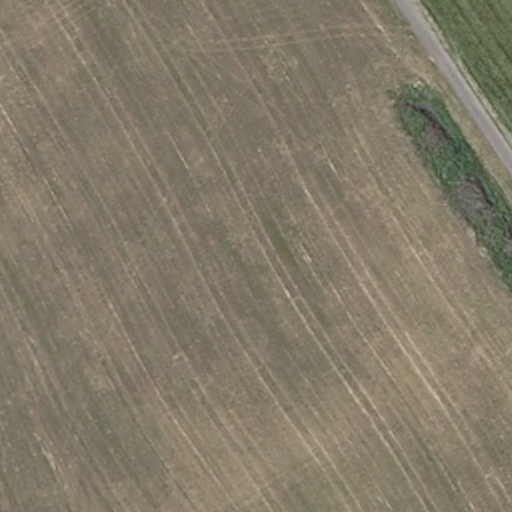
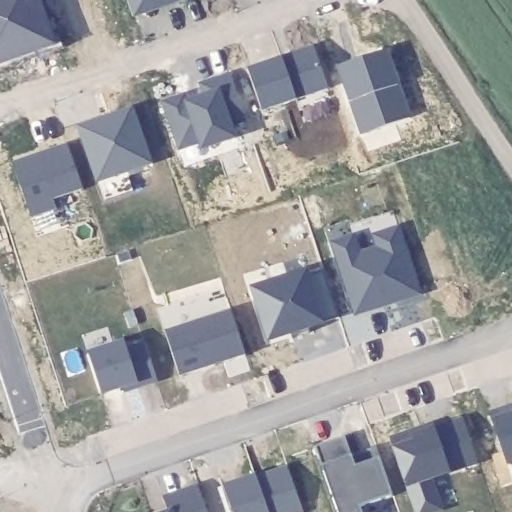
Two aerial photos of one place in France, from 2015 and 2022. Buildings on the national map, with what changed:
new [(0,64),(0,0),(41,0),(55,46),(0,64)]
new [(127,0),(182,0),(132,18),(127,0)]
new [(313,44),(327,88),(261,110),(248,69),(313,44)]
new [(388,48),(411,117),(360,134),(337,66),(388,48)]
new [(187,93),(187,98),(202,94),(198,83),(230,72),(246,121),(233,125),(238,136),(201,150),(199,143),(178,151),(162,101),(187,93)]
new [(132,106),(153,165),(96,183),(77,126),(132,106)]
new [(68,143),(83,189),(52,198),(55,209),(31,218),(12,161),(68,143)]
new [(355,235),(360,250),(373,246),(372,234),(401,225),(422,293),(354,317),(330,243),(355,235)]
new [(307,267),(309,276),(323,272),(337,318),(267,342),(249,287),(307,267)]
new [(230,309),(246,357),(180,378),(165,331),(230,309)]
new [(157,384),(138,389),(137,386),(103,398),(88,353),(125,341),(127,347),(144,341),(157,384)]
new [(488,411),(512,403),(512,466),(508,468),(488,411)]
new [(478,467),(450,475),(433,481),(444,512),(443,512),(415,512),(407,491),(392,448),(390,438),(432,422),(434,427),(464,418),(478,467)]
new [(345,436),(352,456),(375,447),(379,459),(384,456),(397,497),(361,507),(362,512),(337,512),(315,447),(345,436)]
new [(302,509),(294,512),(233,512),(223,485),(255,473),(258,480),(271,476),(270,471),(287,465),(302,509)]
new [(207,512),(156,512),(167,508),(164,498),(199,487),(207,512)]

